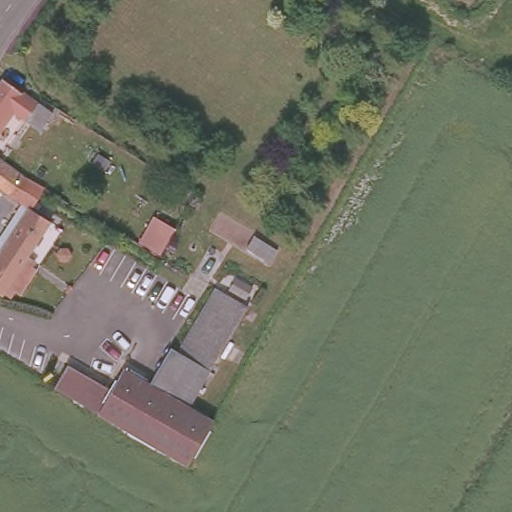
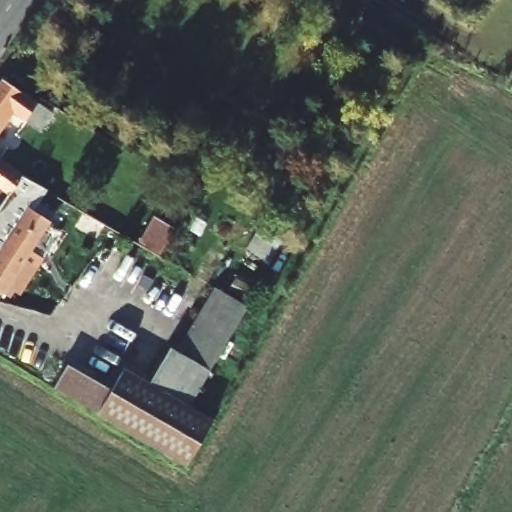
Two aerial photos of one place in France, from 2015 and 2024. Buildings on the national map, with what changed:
unchanged [(77,139),(58,127),(62,122),(51,116),(41,130),(28,122),(1,160),(0,159),(0,81),(2,79),(38,102),(42,97),(67,113),(67,114),(86,125),(77,139)]
unchanged [(1,160),(23,176),(25,175),(34,181),(37,183),(45,187),(32,208),(51,221),(47,227),(55,232),(51,238),(58,242),(23,296),(17,292),(12,298),(5,293),(2,295),(0,293),(0,254),(24,217),(17,212),(24,202),(0,186),(0,159),(1,160)]
unchanged [(249,306),(190,406),(213,420),(201,441),(187,466),(54,387),(68,363),(112,390),(125,368),(151,382),(171,347),(179,352),(217,287),(249,306)]

